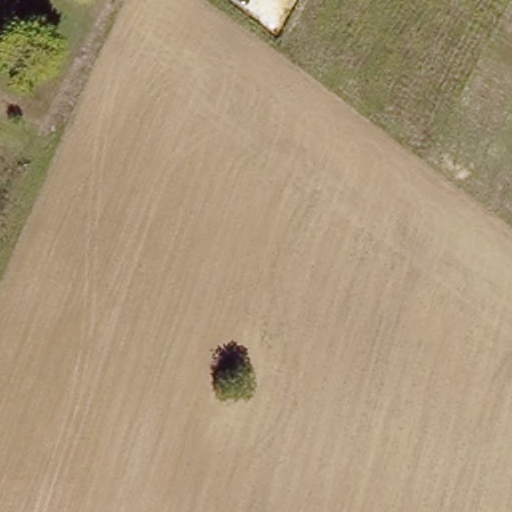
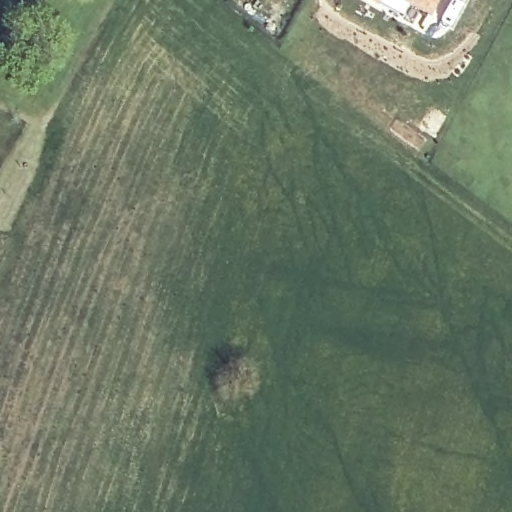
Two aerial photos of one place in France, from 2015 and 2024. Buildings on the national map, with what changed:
new [(428,15),(408,4),(402,15),(372,0),(437,0),(428,15)]

